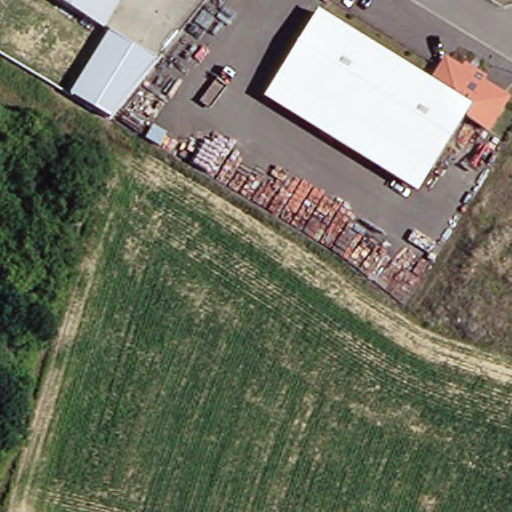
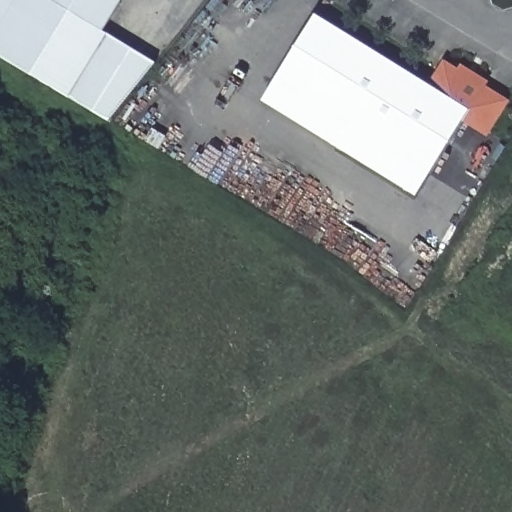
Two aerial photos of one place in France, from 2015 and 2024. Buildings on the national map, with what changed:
new [(0,0),(47,0),(106,35),(108,37),(68,98),(0,57),(0,0)]
unchanged [(106,35),(47,0),(127,0),(106,35)]
unchanged [(298,93),(429,171),(426,176),(416,192),(411,189),(260,99),(311,13),(337,28),(298,93)]
unchanged [(429,83),(442,61),(502,96),(492,114),(484,126),(481,124),(463,114),(429,171),(298,93),(337,28),(429,83)]
unchanged [(157,64),(110,124),(68,98),(108,37),(157,64)]

